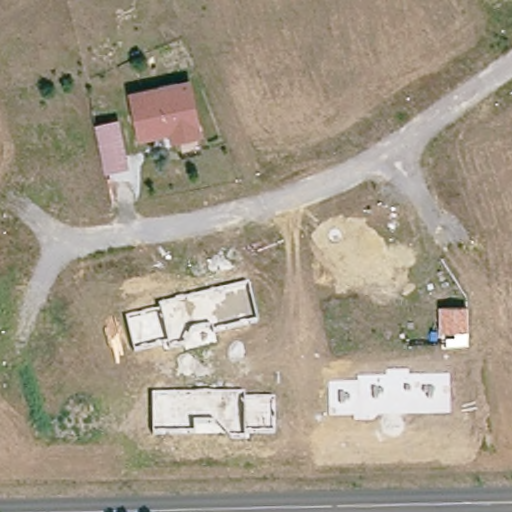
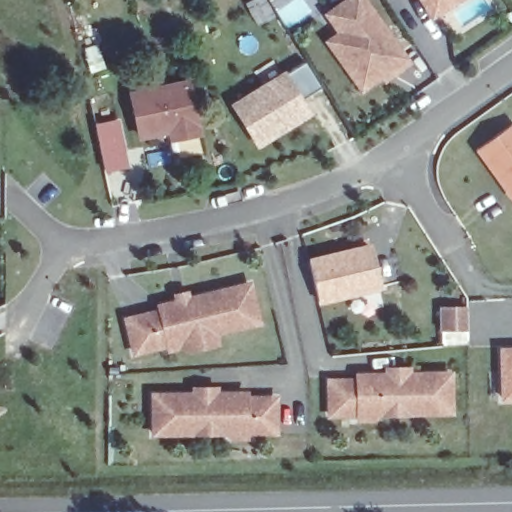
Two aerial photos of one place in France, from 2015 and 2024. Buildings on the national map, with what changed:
new [(383,82),(380,79),(360,92),(323,41),(336,33),(323,15),(342,0),(367,0),(412,62),(383,82)]
new [(431,20),(418,0),(460,0),(431,20)]
new [(312,115),(256,149),(229,105),(284,70),(312,115)]
unchanged [(128,91),(190,79),(201,134),(170,140),(167,132),(137,139),(128,91)]
unchanged [(105,171),(95,123),(115,119),(127,167),(105,171)]
new [(475,151),(512,124),(512,202),(511,202),(475,151)]
new [(382,290),(320,305),(308,259),(371,244),(382,290)]
new [(260,322),(217,334),(220,344),(183,355),(167,347),(135,355),(124,318),(157,310),(157,305),(175,300),(173,294),(189,291),(191,299),(251,282),(260,322)]
new [(480,308),(481,345),(455,347),(454,309),(480,308)]
new [(512,401),(503,401),(499,349),(512,348),(512,401)]
new [(452,414),(380,415),(375,423),(356,423),(353,418),(329,416),(328,380),(355,380),(355,373),(385,373),(385,367),(411,366),(411,373),(451,372),(452,414)]
new [(277,435),(248,435),(248,442),(229,442),(229,435),(153,435),(153,393),(192,393),(192,386),(219,386),(218,391),(248,392),(248,396),(278,396),(277,435)]

